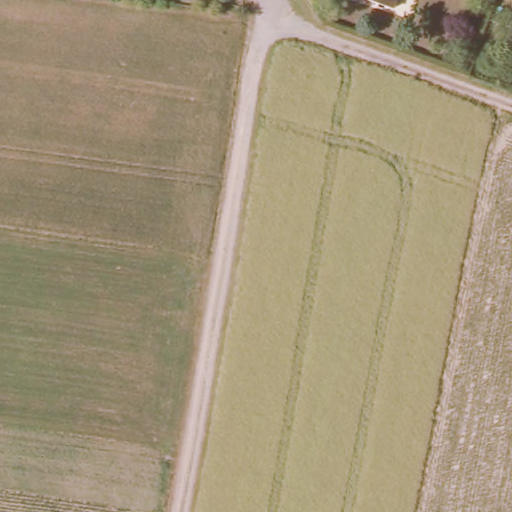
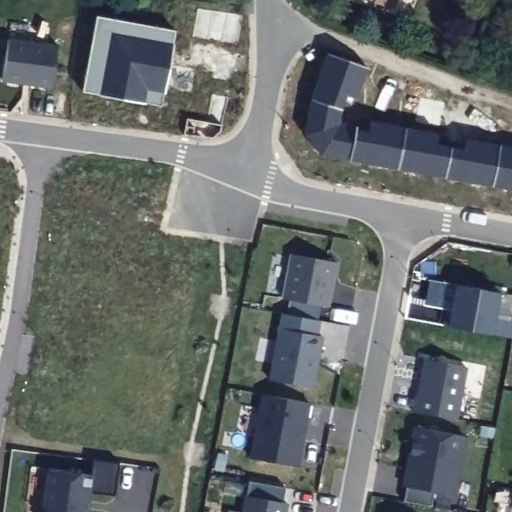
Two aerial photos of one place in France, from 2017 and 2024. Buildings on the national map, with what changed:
unchanged [(388,0),(385,7),(365,0),(388,0)]
new [(96,16),(174,30),(161,106),(82,92),(96,16)]
new [(58,46),(53,87),(3,80),(8,39),(58,46)]
new [(312,98),(328,54),(369,67),(357,99),(347,95),(342,109),(339,125),(355,128),(369,132),(371,120),(438,132),(437,145),(466,150),(467,140),(512,147),(512,190),(321,155),(306,136),(312,98)]
new [(334,262),(326,307),(284,299),(291,255),(334,262)]
new [(499,293),(492,334),(444,325),(446,310),(452,311),(456,285),(499,293)]
new [(318,320),(316,336),(321,337),(313,387),(269,380),(281,313),(318,320)]
new [(466,367),(456,420),(413,411),(415,396),(418,396),(425,360),(466,367)]
new [(309,402),(298,466),(251,457),(263,394),(309,402)]
new [(464,436),(454,495),(434,491),(431,507),(405,502),(408,486),(404,486),(414,427),(464,436)]
new [(44,510),(50,468),(91,474),(93,459),(119,462),(115,495),(89,491),(86,512),(44,512),(44,510)]
new [(284,487),(282,502),(286,503),(285,512),(242,512),(248,481),(284,487)]

